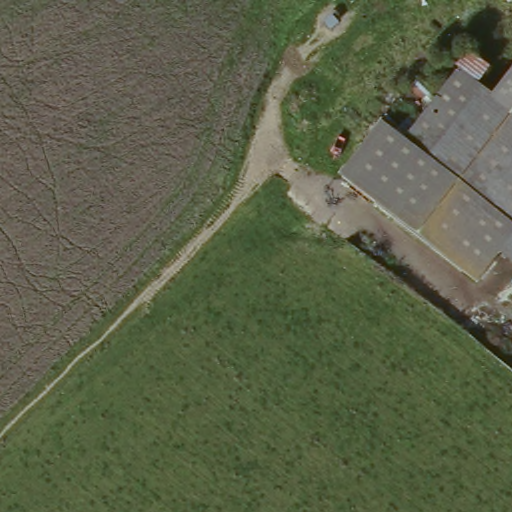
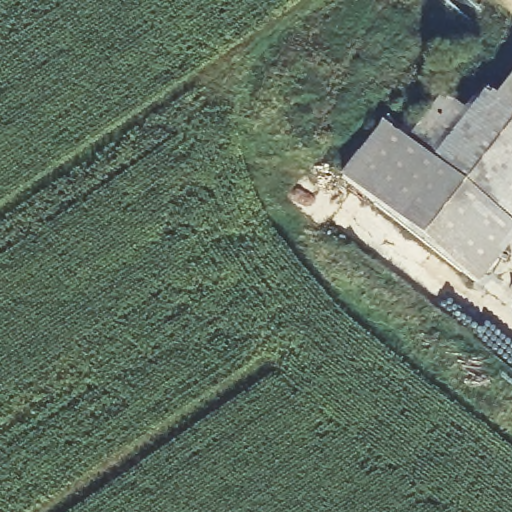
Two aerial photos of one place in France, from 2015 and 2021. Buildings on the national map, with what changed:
unchanged [(418,71),(443,92),(475,50),(494,64),(480,80),(495,91),(512,71),(512,253),(507,250),(483,282),(341,175),(418,71)]

